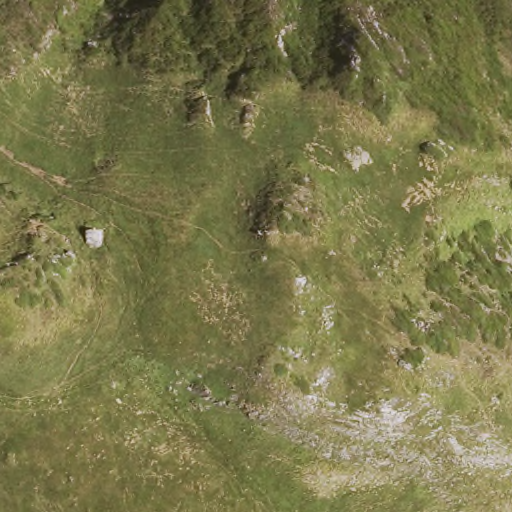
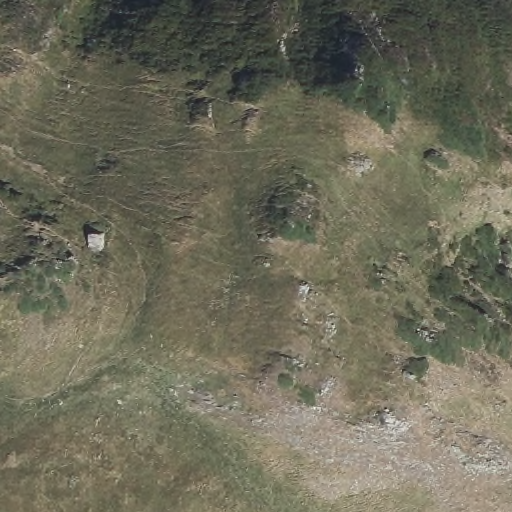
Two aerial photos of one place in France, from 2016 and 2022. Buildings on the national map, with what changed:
unchanged [(96,230),(106,227),(107,245),(89,245),(87,230),(96,230)]

